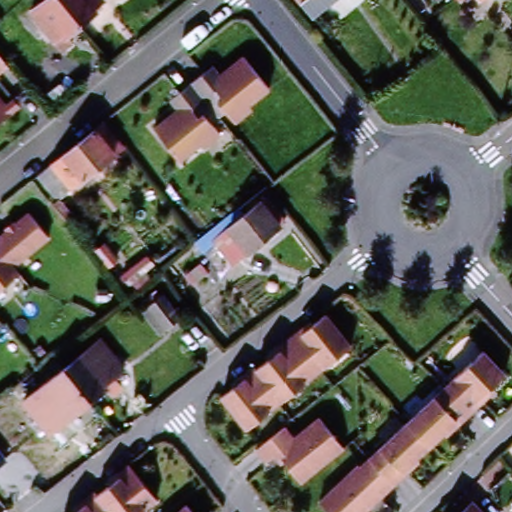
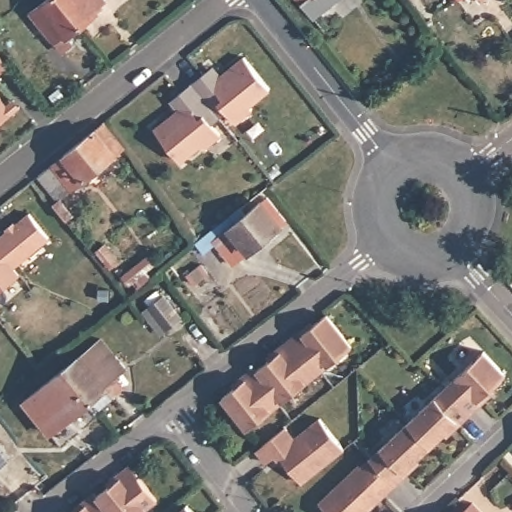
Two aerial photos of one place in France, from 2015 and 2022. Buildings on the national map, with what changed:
unchanged [(25,7),(34,0),(59,0),(65,7),(74,20),(83,29),(72,39),(68,41),(73,45),(63,53),(56,45),(32,16),(0,42),(0,28),(25,7)]
unchanged [(59,0),(99,0),(104,6),(95,14),(98,16),(83,29),(74,20),(65,7),(59,0)]
unchanged [(257,75),(269,90),(248,106),(251,110),(234,123),(216,100),(201,112),(215,130),(219,135),(208,145),(203,148),(200,145),(179,161),(153,129),(161,122),(174,112),(179,109),(172,100),(178,95),(204,75),(210,70),(217,78),(243,57),(257,75)]
unchanged [(6,69),(0,74),(0,61),(6,69)]
unchanged [(18,109),(10,115),(0,123),(0,103),(3,107),(11,101),(18,109)]
unchanged [(39,176),(95,130),(114,154),(60,198),(73,214),(66,220),(64,217),(53,204),(58,200),(39,176)]
unchanged [(275,212),(281,219),(287,226),(238,266),(234,269),(216,249),(204,259),(198,251),(229,225),(243,214),(246,217),(266,201),(275,212)]
unchanged [(9,267),(0,256),(0,234),(3,232),(0,229),(0,223),(4,220),(9,226),(24,215),(44,239),(9,267)]
unchanged [(9,267),(15,274),(0,286),(0,256),(9,267)]
unchanged [(158,298),(176,320),(163,331),(156,336),(138,315),(145,309),(158,298)]
unchanged [(288,343),(322,316),(348,348),(313,375),(288,343)]
unchanged [(60,368),(84,348),(95,340),(119,370),(109,380),(116,388),(108,396),(101,388),(87,400),(60,368)]
unchanged [(253,370),(288,343),(313,375),(279,402),(253,370)]
unchanged [(478,352),(500,375),(482,392),(486,396),(466,415),(441,387),(478,352)]
unchanged [(87,400),(71,413),(63,420),(49,432),(23,400),(36,387),(60,368),(87,400)]
unchanged [(243,430),(218,398),(253,370),(279,402),(243,430)]
unchanged [(466,415),(447,432),(444,430),(426,447),(403,423),(441,387),(466,415)]
unchanged [(297,483),(274,455),(263,463),(253,451),(281,428),(291,440),(316,420),(339,450),(297,483)]
unchanged [(403,423),(426,447),(408,464),(410,467),(391,485),(366,459),(403,423)]
unchanged [(362,512),(323,512),(315,503),(354,466),(356,468),(366,459),(391,485),(362,512)]
unchanged [(133,468),(158,501),(144,512),(110,512),(98,496),(133,468)]
unchanged [(98,496),(110,512),(78,512),(98,496)]
unchanged [(183,505),(189,512),(176,512),(183,505)]
unchanged [(471,505),(478,512),(463,512),(471,505)]

